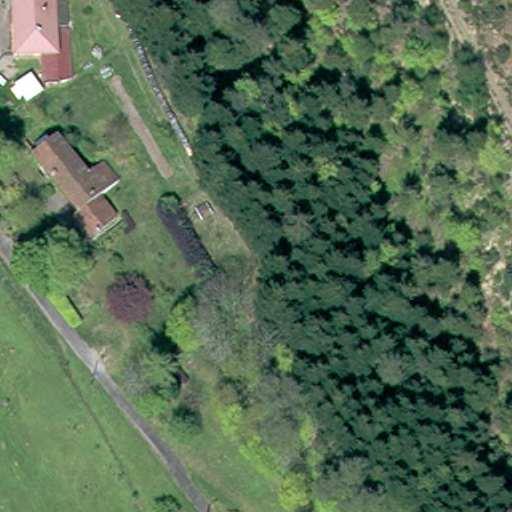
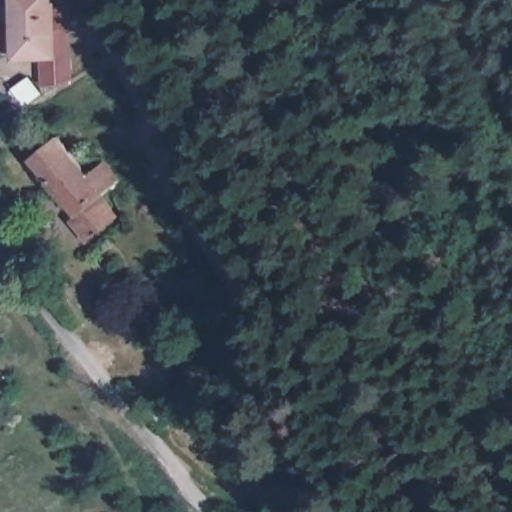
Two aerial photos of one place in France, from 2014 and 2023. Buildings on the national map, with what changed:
unchanged [(70,81),(41,82),(39,54),(14,56),(9,0),(60,0),(63,29),(66,29),(70,81)]
unchanged [(72,217),(77,212),(30,156),(54,137),(86,175),(101,162),(116,179),(97,196),(114,215),(101,227),(89,237),(72,217)]

